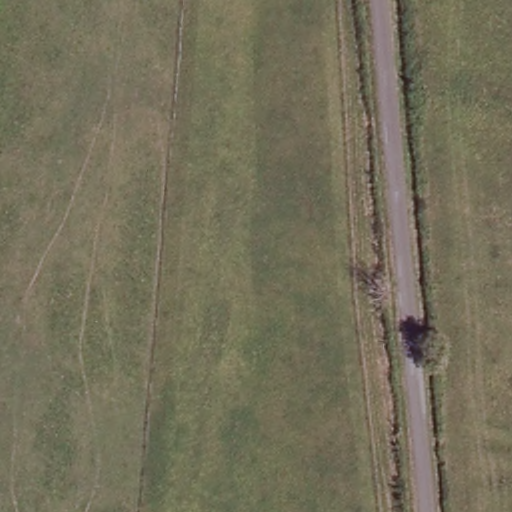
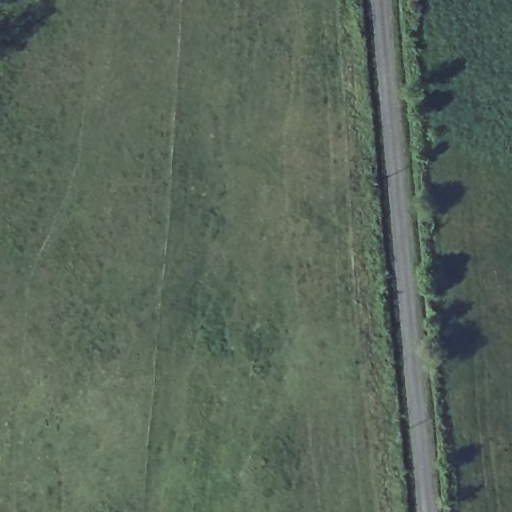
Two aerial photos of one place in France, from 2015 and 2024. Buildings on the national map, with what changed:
[]

